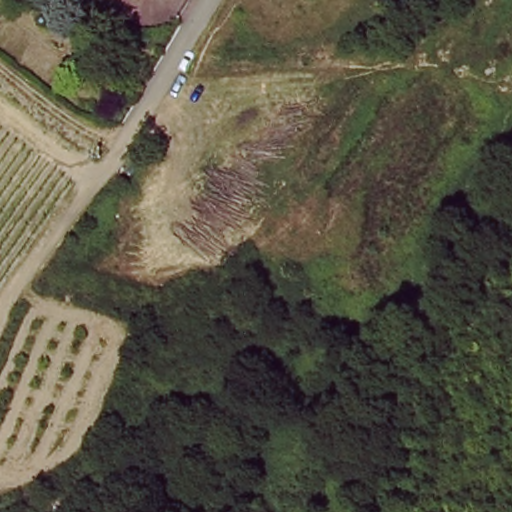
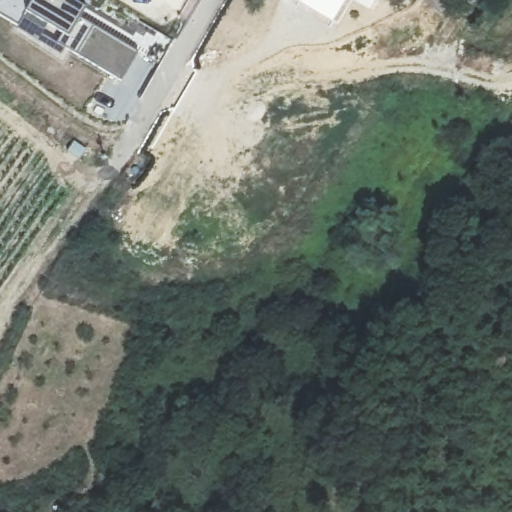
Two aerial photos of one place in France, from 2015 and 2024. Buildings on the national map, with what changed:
new [(72,0),(86,9),(80,19),(138,54),(122,82),(57,44),(62,35),(48,26),(40,43),(16,29),(18,26),(0,15),(0,3),(2,0),(72,0)]

